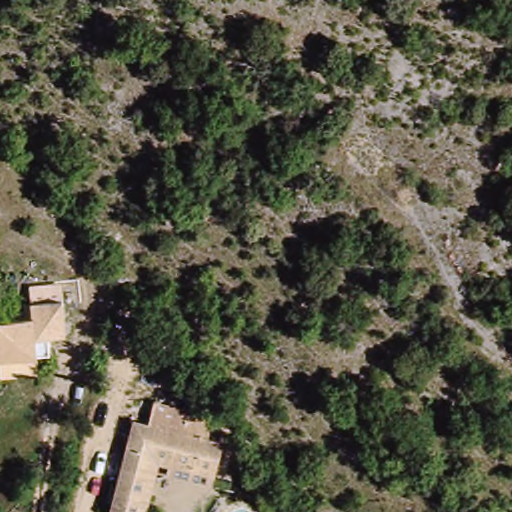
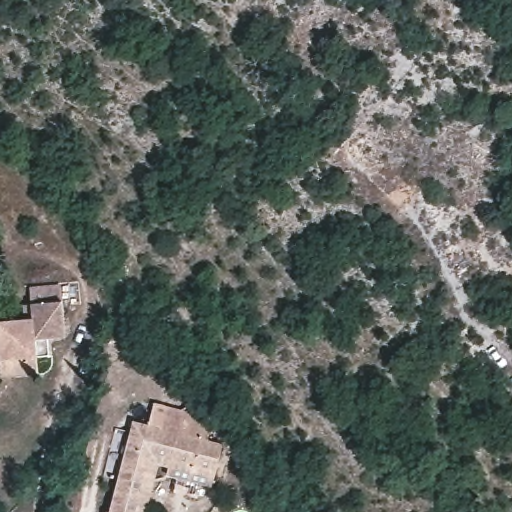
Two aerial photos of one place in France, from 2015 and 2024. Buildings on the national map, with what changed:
unchanged [(28,300),(64,297),(68,338),(35,342),(39,372),(0,378),(0,320),(28,317),(28,300)]
unchanged [(110,512),(129,427),(144,428),(147,413),(187,420),(184,440),(220,445),(216,471),(163,461),(161,472),(151,512),(110,512)]

